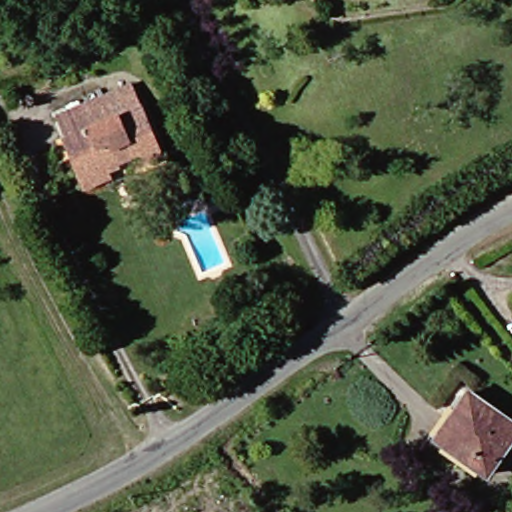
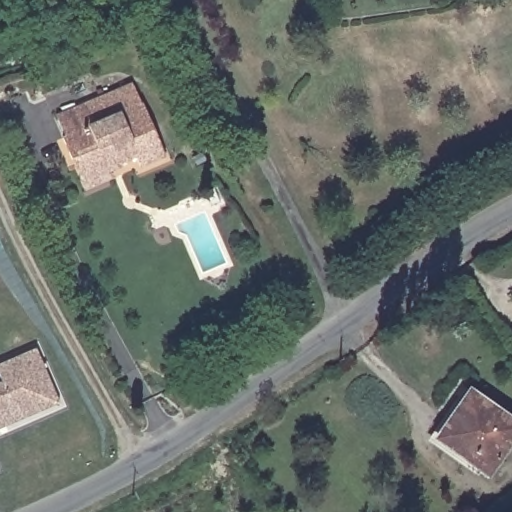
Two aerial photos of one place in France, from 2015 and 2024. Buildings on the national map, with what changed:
unchanged [(92,193),(77,163),(64,137),(69,134),(63,121),(101,102),(111,97),(121,116),(144,103),(172,153),(147,165),(142,156),(116,169),(121,180),(92,193)]
unchanged [(224,201),(216,186),(225,182),(232,197),(224,201)]
new [(2,382),(0,379),(0,365),(37,349),(61,404),(0,430),(0,383),(2,382)]
unchanged [(441,439),(475,394),(512,424),(512,449),(489,477),(441,439)]

